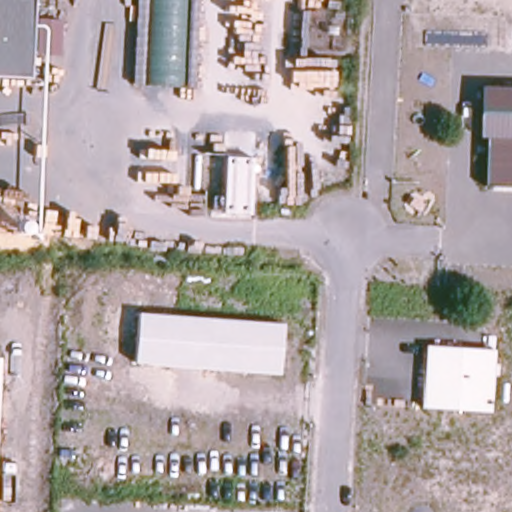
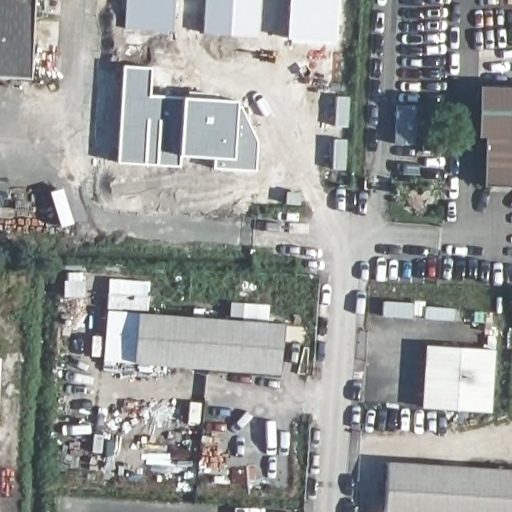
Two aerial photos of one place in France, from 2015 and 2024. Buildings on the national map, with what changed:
unchanged [(31,82),(11,81),(0,80),(0,0),(37,0),(31,82)]
new [(172,31),(124,29),(125,0),(173,0),(172,31)]
demolished [(198,88),(135,87),(138,0),(201,0),(198,88)]
new [(202,32),(204,0),(260,0),(258,36),(202,32)]
new [(335,42),(287,39),(289,0),(337,0),(335,42)]
new [(182,96),(236,99),(236,107),(242,107),(258,142),(256,171),(212,167),(212,157),(181,156),(178,167),(116,163),(122,64),(150,67),(149,96),(182,96)]
unchanged [(487,185),(486,137),(478,137),(480,85),(512,86),(512,186),(487,185)]
new [(415,145),(395,144),(397,107),(417,108),(415,145)]
unchanged [(145,296),(144,312),(277,321),(272,372),(100,361),(105,292),(145,296)]
unchanged [(493,412),(422,408),(424,347),(496,352),(493,412)]
unchanged [(0,374),(0,359),(1,360),(0,374)]
new [(512,471),(512,512),(375,512),(379,462),(512,471)]

